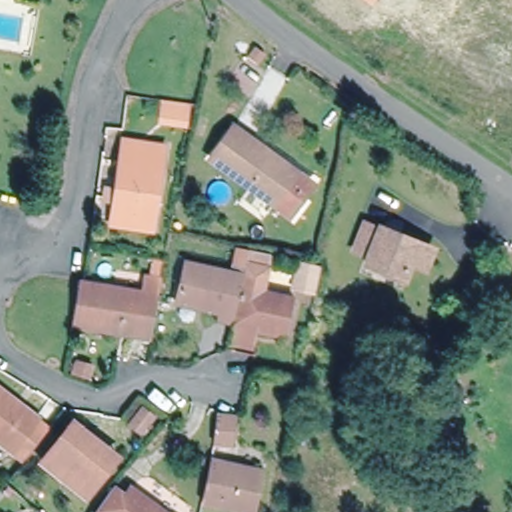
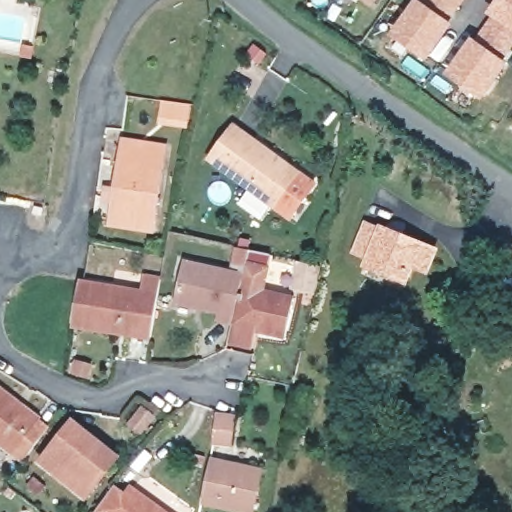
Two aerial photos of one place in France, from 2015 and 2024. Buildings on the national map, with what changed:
unchanged [(365,0),(375,0),(371,5),(365,0)]
new [(389,33),(413,0),(419,0),(420,1),(421,0),(468,0),(425,59),(389,33)]
new [(446,71),(470,37),(475,40),(492,18),(486,15),(496,0),(512,0),(512,54),(482,98),(446,71)]
unchanged [(190,114),(161,110),(164,95),(192,99),(190,114)]
unchanged [(306,180),(283,210),(205,151),(228,121),(306,180)]
unchanged [(131,217),(132,209),(111,205),(123,137),(164,144),(152,212),(151,221),(131,217)]
unchanged [(431,252),(424,272),(411,267),(407,281),(367,267),(370,260),(355,254),(364,228),(431,252)]
unchanged [(231,339),(235,322),(235,320),(245,271),(246,267),(250,247),(271,252),(267,271),(263,291),(294,297),(286,333),(257,327),(253,344),(231,339)]
unchanged [(217,316),(219,307),(178,299),(186,258),(245,271),(235,320),(217,316)]
unchanged [(70,326),(76,285),(83,286),(160,297),(153,338),(70,326)]
unchanged [(0,437),(0,385),(50,430),(26,460),(0,437)]
unchanged [(231,421),(226,448),(211,446),(216,418),(231,421)]
unchanged [(63,475),(44,459),(74,421),(103,445),(118,457),(111,466),(94,487),(87,496),(63,475)]
unchanged [(258,471),(251,508),(201,501),(208,462),(258,471)]
unchanged [(131,495),(136,490),(165,512),(103,512),(98,509),(118,485),(131,495)]

